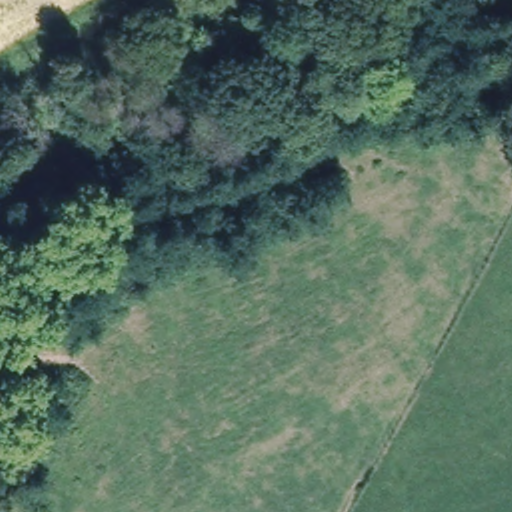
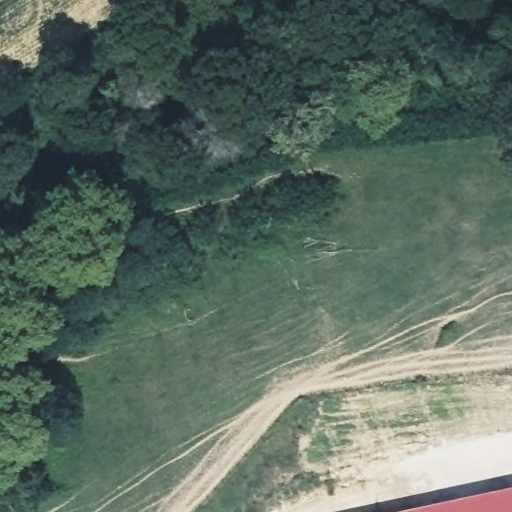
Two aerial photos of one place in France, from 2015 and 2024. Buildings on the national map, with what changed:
new [(512,486),(512,512),(391,512),(512,486)]

